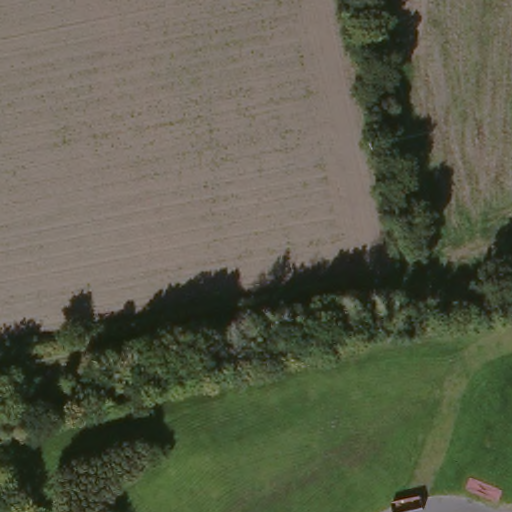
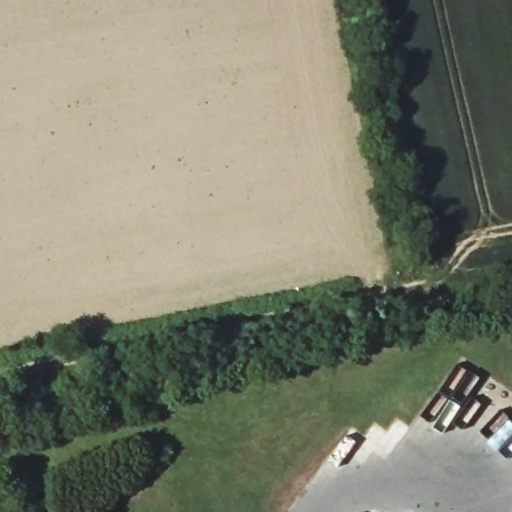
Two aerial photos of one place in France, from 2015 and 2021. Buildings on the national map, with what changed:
[]

